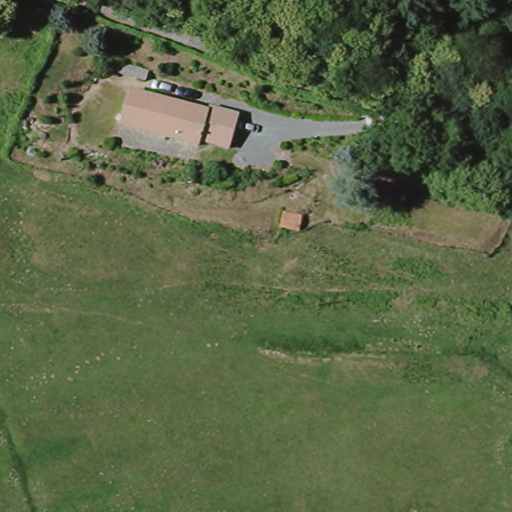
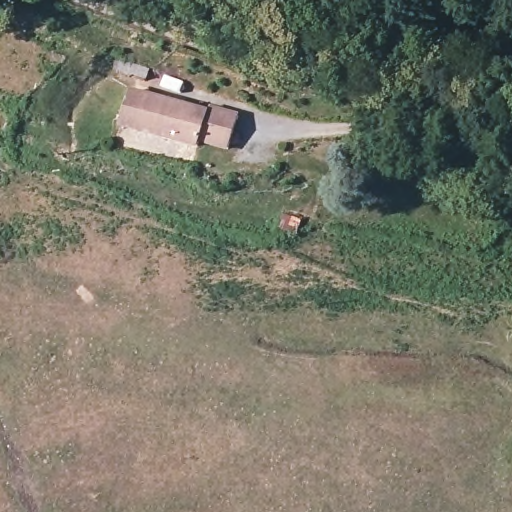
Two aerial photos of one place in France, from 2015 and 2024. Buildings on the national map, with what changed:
unchanged [(199,147),(199,154),(118,132),(128,91),(207,114),(208,108),(241,115),(230,156),(199,147)]
unchanged [(478,185),(494,194),(481,216),(467,210),(459,222),(405,192),(420,165),(473,194),(478,185)]

